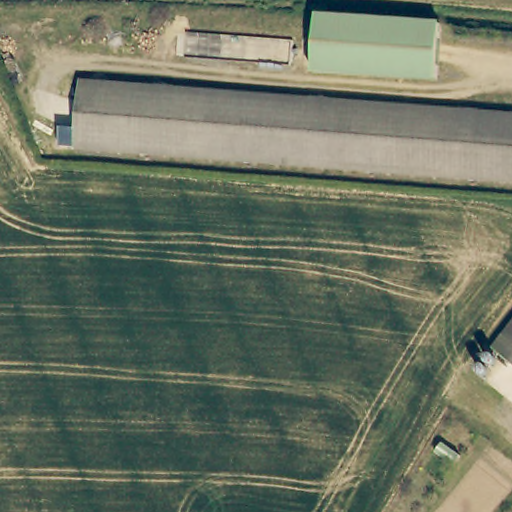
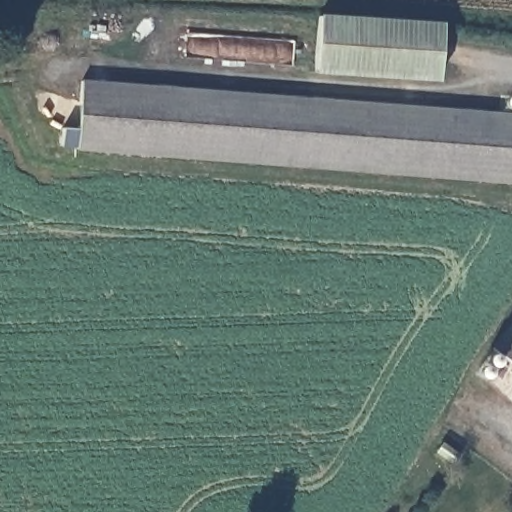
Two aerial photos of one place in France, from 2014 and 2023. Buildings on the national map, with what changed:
unchanged [(310,74),(313,40),(314,19),(440,29),(438,49),(436,84),(310,74)]
unchanged [(80,150),(85,81),(512,114),(512,184),(80,150)]
unchanged [(512,330),(512,364),(495,351),(512,330)]

